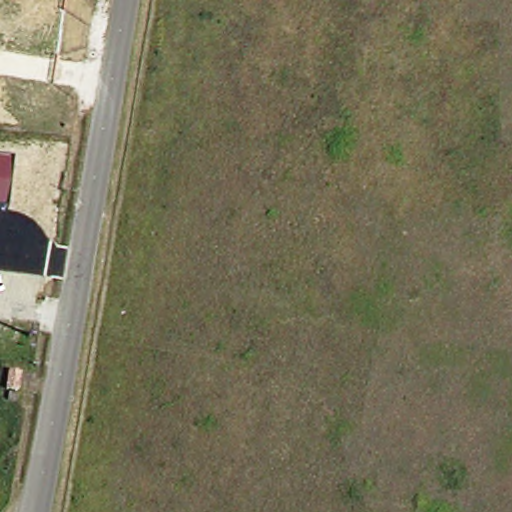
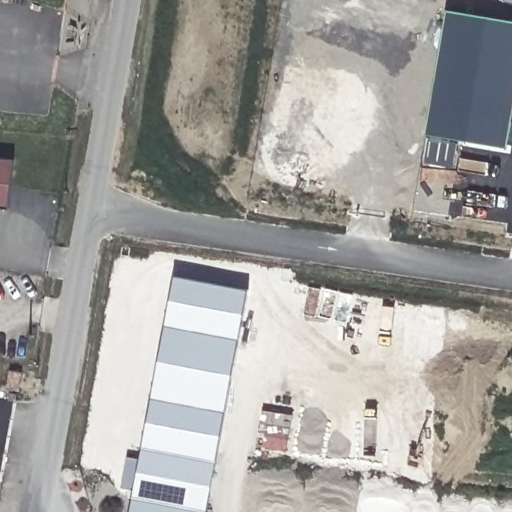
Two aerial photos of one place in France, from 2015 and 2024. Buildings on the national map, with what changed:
new [(447,12),(512,23),(512,117),(507,149),(458,140),(453,168),(424,163),(427,135),(447,12)]
unchanged [(8,211),(0,210),(0,159),(13,161),(8,211)]
new [(206,512),(129,512),(174,277),(248,292),(206,512)]
unchanged [(15,386),(6,385),(8,366),(17,367),(15,386)]
unchanged [(14,396),(8,396),(8,388),(15,389),(14,396)]

